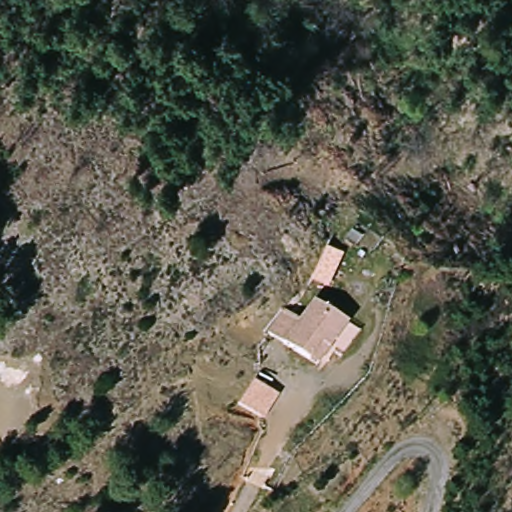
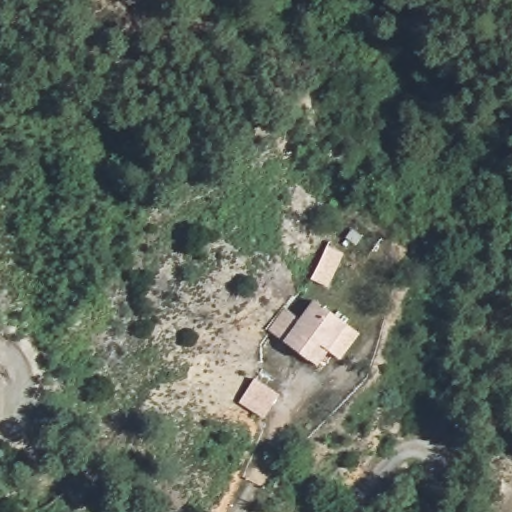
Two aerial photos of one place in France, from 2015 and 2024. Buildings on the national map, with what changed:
unchanged [(313,368),(267,324),(287,304),(301,319),(320,301),(350,332),(313,368)]
unchanged [(280,394),(260,415),(239,396),(259,375),(280,394)]

